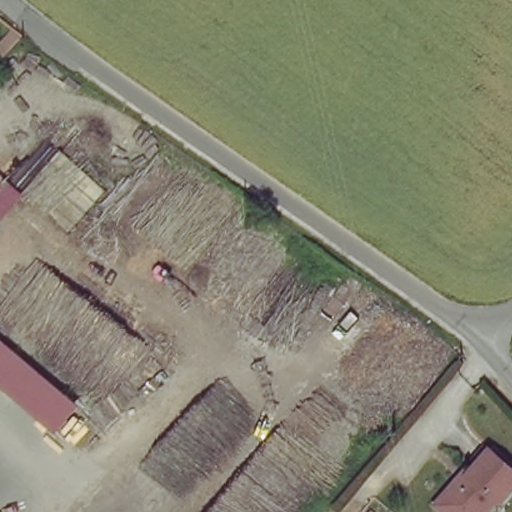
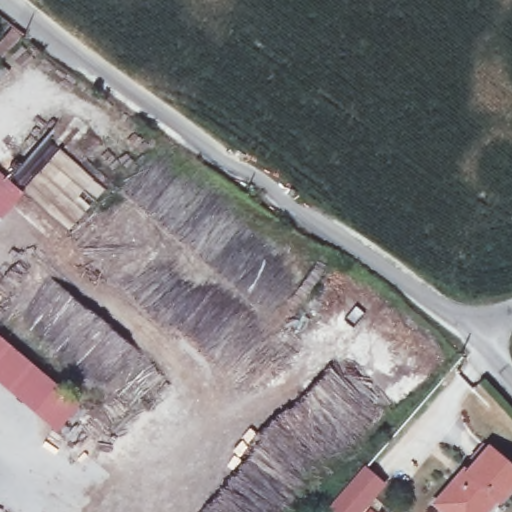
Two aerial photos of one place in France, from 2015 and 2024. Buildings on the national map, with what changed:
unchanged [(49,420),(0,378),(0,340),(67,399),(49,420)]
unchanged [(454,477),(458,481),(488,450),(512,470),(512,482),(498,499),(493,497),(480,512),(443,512),(432,503),(454,477)]
new [(387,485),(364,512),(332,512),(327,508),(364,465),(387,485)]

